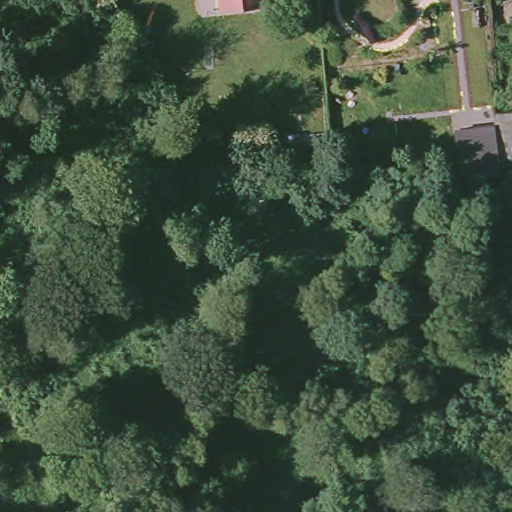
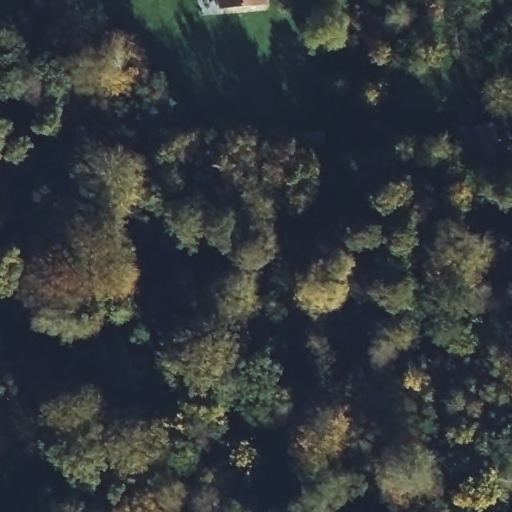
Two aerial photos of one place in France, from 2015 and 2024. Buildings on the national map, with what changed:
unchanged [(222,9),(222,0),(264,0),(265,6),(222,9)]
unchanged [(495,103),(512,100),(512,147),(503,149),(495,103)]

